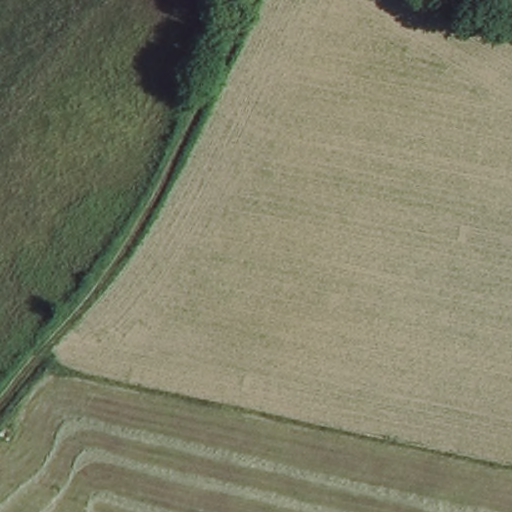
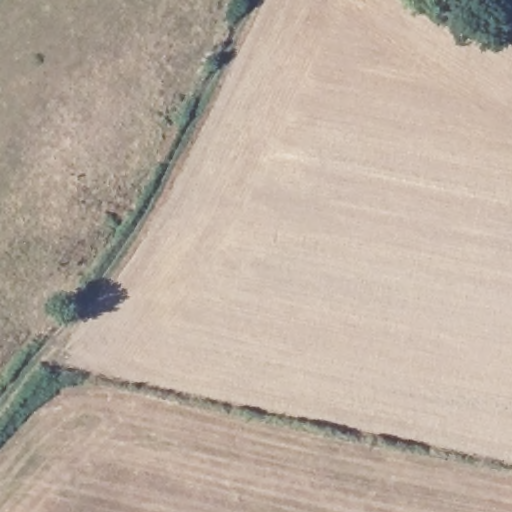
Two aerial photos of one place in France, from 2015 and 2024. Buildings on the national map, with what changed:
[]

